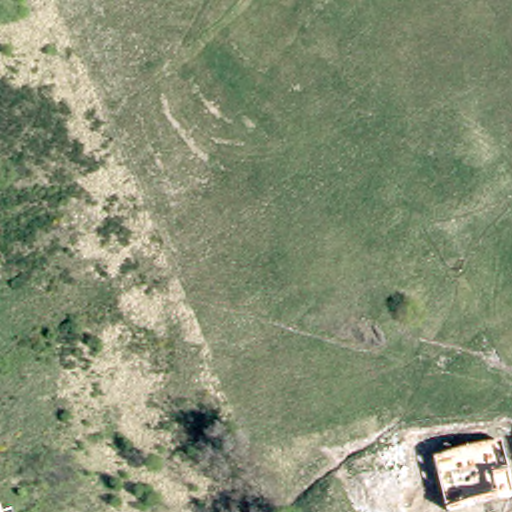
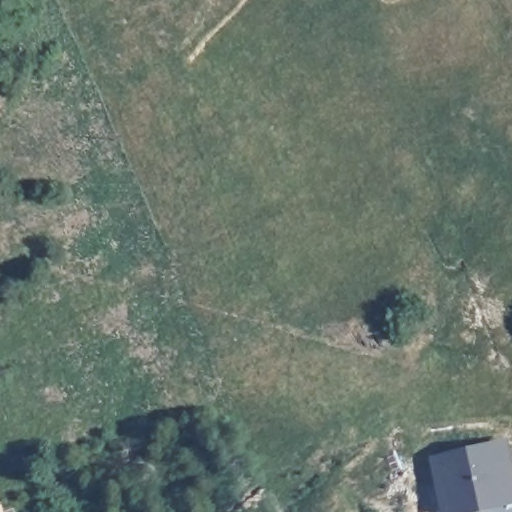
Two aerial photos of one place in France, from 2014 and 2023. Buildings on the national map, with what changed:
new [(512,458),(512,506),(485,512),(442,512),(430,456),(507,439),(512,458)]

